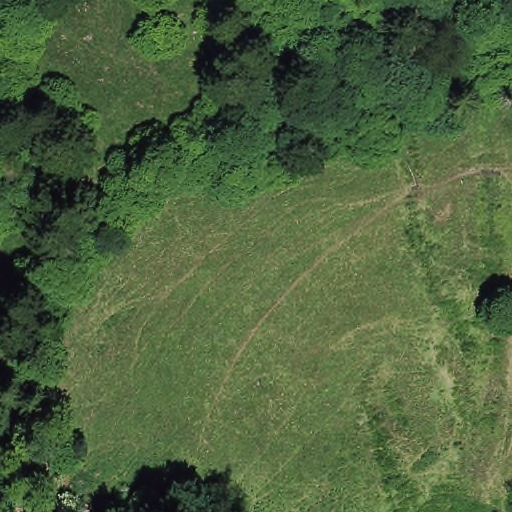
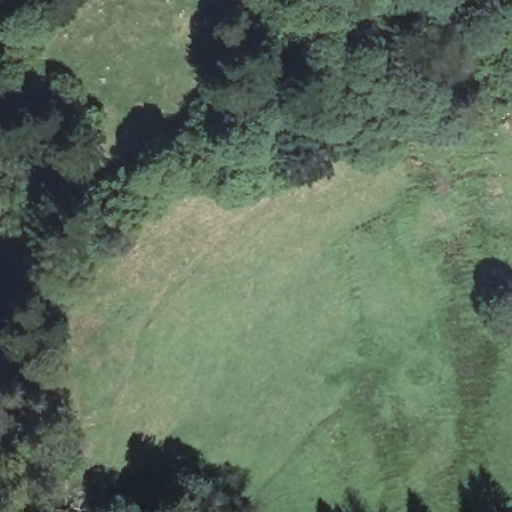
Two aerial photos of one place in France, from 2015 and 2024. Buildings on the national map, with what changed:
unchanged [(512,293),(512,312),(509,311),(512,293)]

